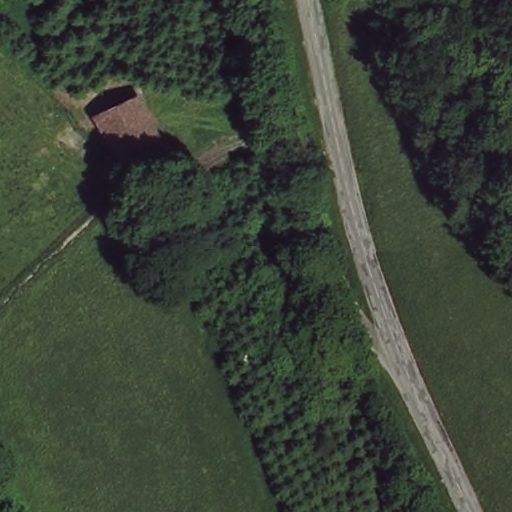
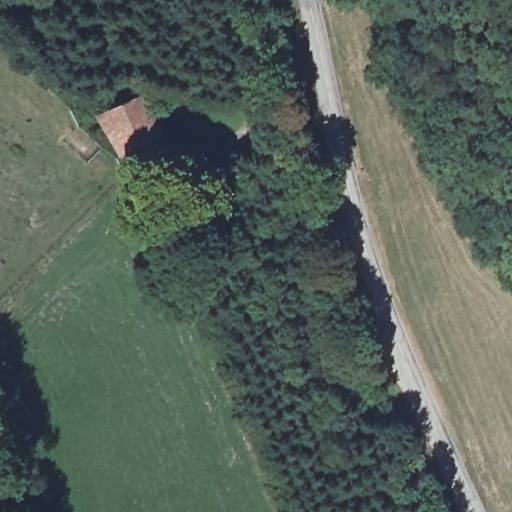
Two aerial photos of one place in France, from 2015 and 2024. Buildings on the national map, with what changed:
unchanged [(158,132),(121,150),(102,112),(141,95),(158,132)]

